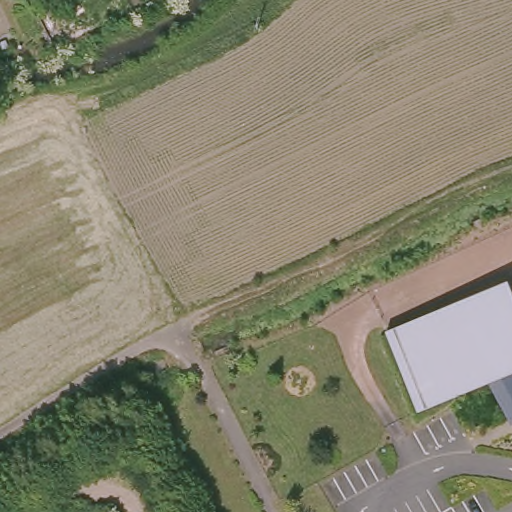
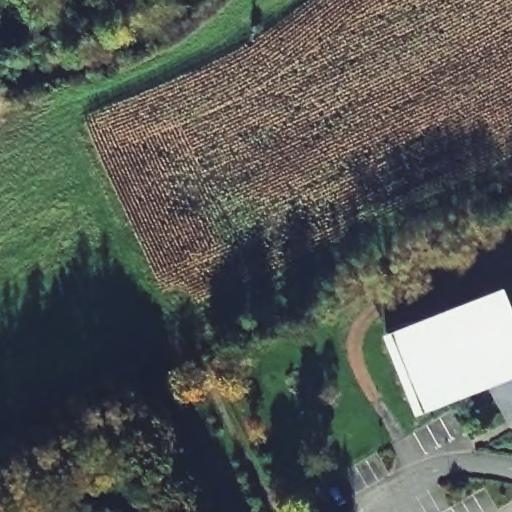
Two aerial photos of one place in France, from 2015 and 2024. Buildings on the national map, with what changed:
unchanged [(512,296),(512,423),(510,425),(488,383),(415,412),(385,332),(507,284),(512,296)]

